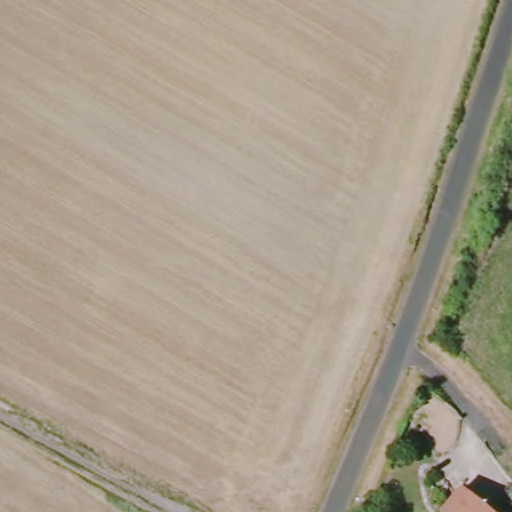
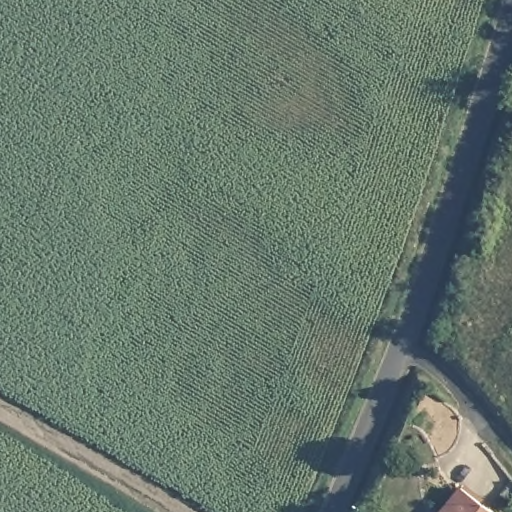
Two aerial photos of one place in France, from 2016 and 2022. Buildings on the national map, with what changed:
unchanged [(493,512),(440,512),(460,487),(493,512)]

